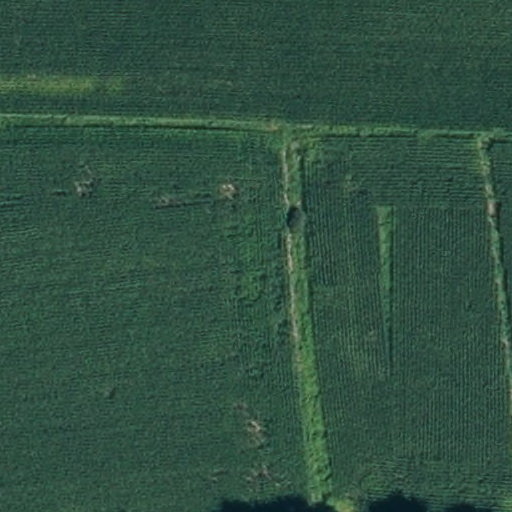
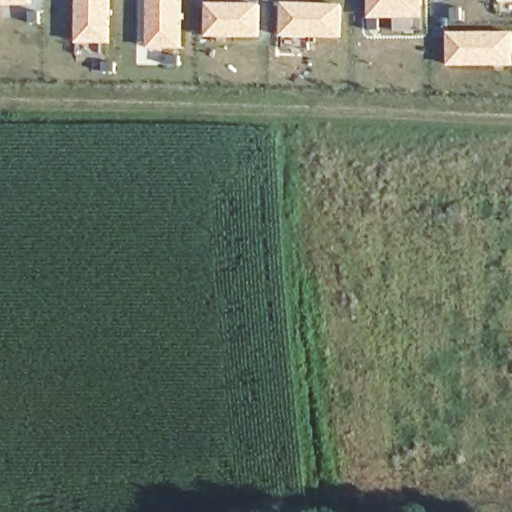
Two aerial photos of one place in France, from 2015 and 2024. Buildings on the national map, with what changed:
new [(0,3),(0,0),(32,0),(33,4),(1,4),(0,3)]
new [(83,36),(83,43),(79,43),(79,0),(112,0),(112,36),(83,36)]
new [(149,0),(183,0),(180,46),(153,46),(149,27),(149,0)]
new [(371,19),(371,0),(425,0),(421,26),(371,19)]
new [(512,0),(512,5),(504,5),(504,0),(512,0)]
new [(285,4),(346,6),(347,41),(285,39),(285,4)]
new [(210,6),(261,8),(263,16),(260,34),(210,33),(210,6)]
new [(512,64),(456,64),(456,39),(511,39),(512,40),(512,64)]

